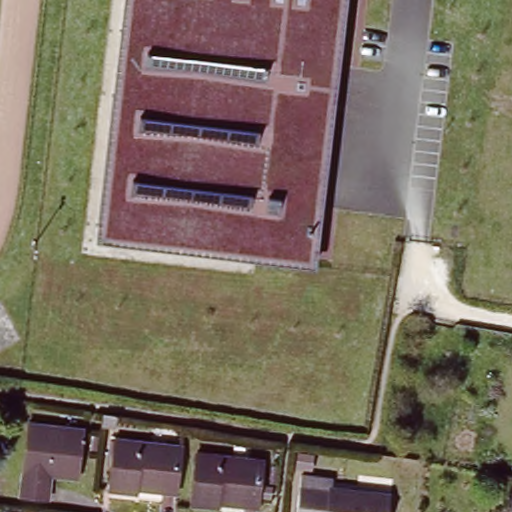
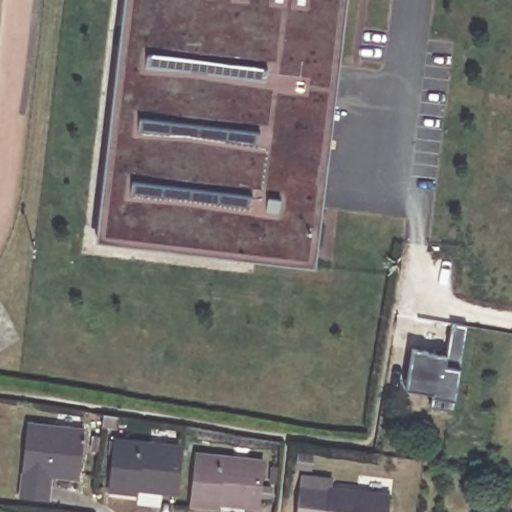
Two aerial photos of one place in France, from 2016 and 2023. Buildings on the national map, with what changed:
unchanged [(98,245),(124,0),(345,0),(311,273),(98,245)]
new [(411,345),(427,348),(427,350),(445,353),(451,322),(467,325),(451,409),(428,405),(430,391),(403,386),(411,345)]
unchanged [(101,417),(114,418),(112,433),(100,432),(101,417)]
unchanged [(27,425),(81,432),(76,476),(50,474),(46,501),(18,497),(27,425)]
unchanged [(137,495),(110,492),(116,440),(181,448),(175,496),(137,492),(137,495)]
unchanged [(216,503),(215,507),(186,503),(191,453),(257,461),(252,506),(216,503)]
unchanged [(360,512),(298,512),(302,480),(330,484),(329,492),(362,497),(360,512)]
unchanged [(388,512),(360,512),(362,497),(390,501),(388,512)]

